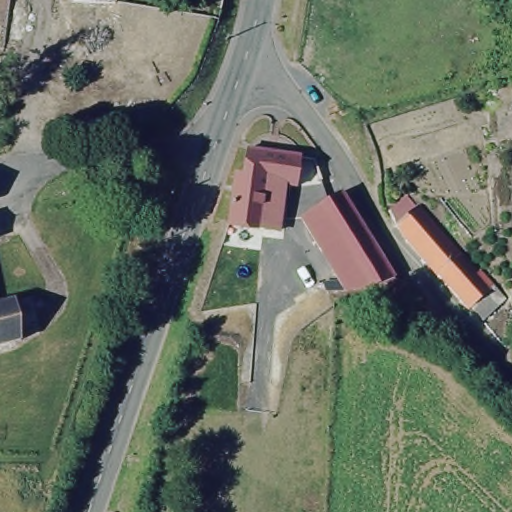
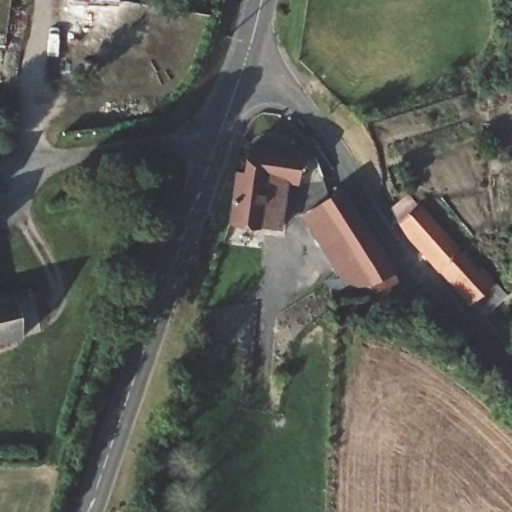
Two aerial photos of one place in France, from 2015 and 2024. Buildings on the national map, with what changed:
unchanged [(104,2),(87,0),(104,0),(104,2)]
unchanged [(248,147),(304,155),(299,187),(271,182),(267,207),(283,210),(281,225),(280,229),(230,221),(231,211),(228,211),(248,147)]
unchanged [(337,278),(304,227),(346,200),(394,276),(346,292),(338,295),(320,301),(315,286),(337,278)]
unchanged [(401,236),(390,212),(395,209),(409,201),(461,258),(440,282),(401,236)]
unchanged [(461,258),(504,305),(487,323),(475,311),(468,317),(440,282),(461,258)]
unchanged [(12,293),(21,332),(0,337),(0,296),(12,293)]

